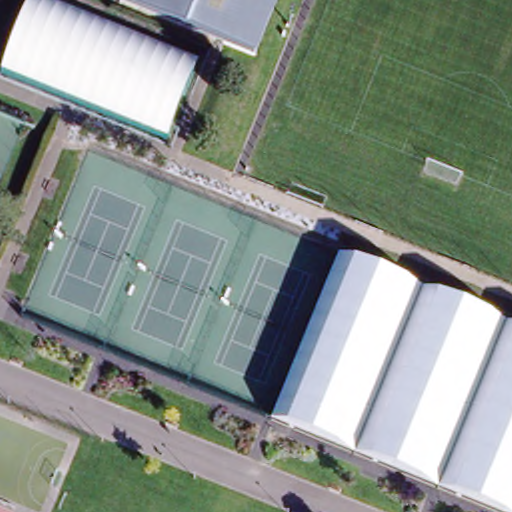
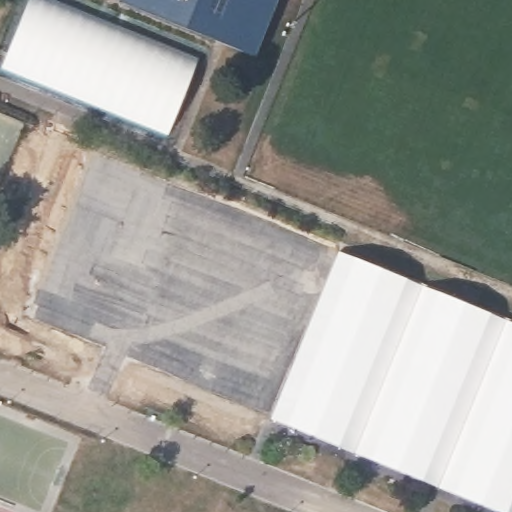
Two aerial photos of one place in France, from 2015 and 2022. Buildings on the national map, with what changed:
unchanged [(153,134),(11,75),(44,0),(48,0),(184,56),(153,134)]
unchanged [(118,5),(121,0),(279,0),(255,61),(118,5)]
unchanged [(512,330),(512,512),(496,512),(270,417),(337,257),(512,330)]

